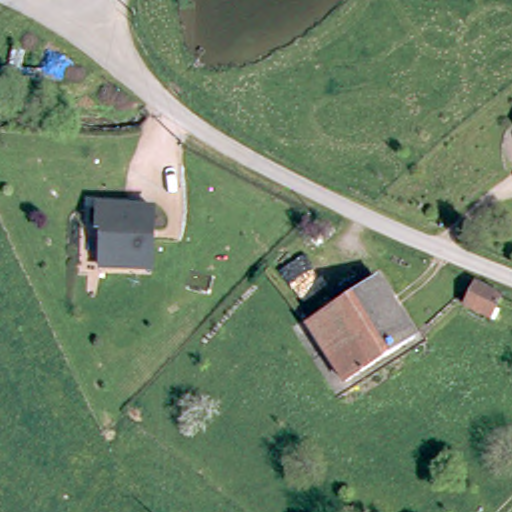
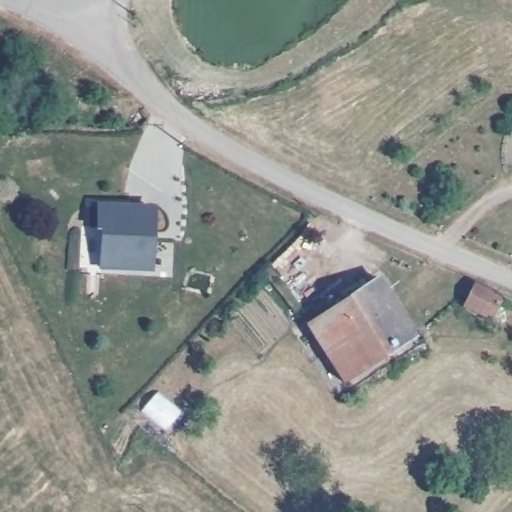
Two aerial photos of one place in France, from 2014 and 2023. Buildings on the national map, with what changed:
unchanged [(144,269),(101,267),(102,228),(98,228),(98,205),(154,207),(153,230),(153,269),(144,269)]
unchanged [(373,278),(411,338),(342,381),(305,321),(373,278)]
unchanged [(491,319),(466,307),(476,284),(503,295),(491,319)]

